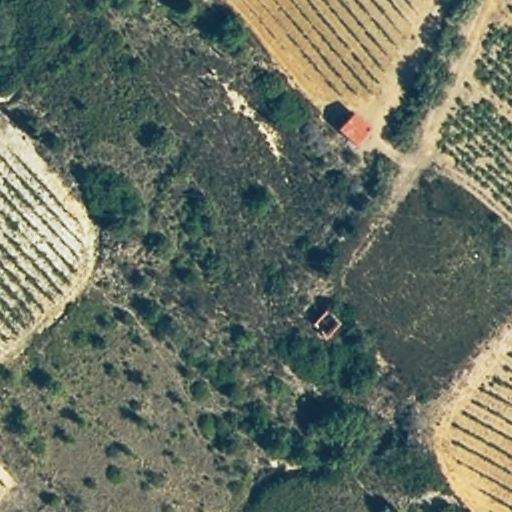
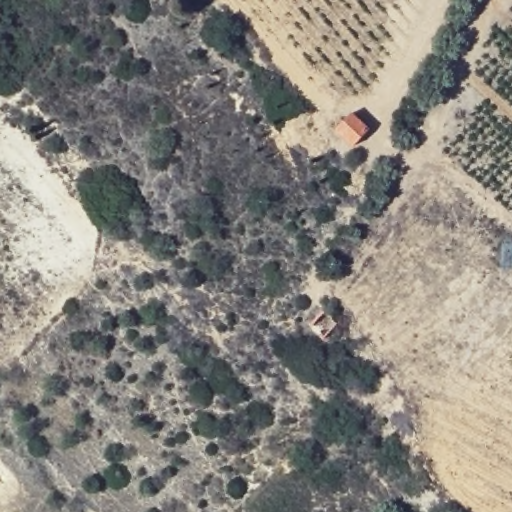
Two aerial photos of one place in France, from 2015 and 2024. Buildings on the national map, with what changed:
unchanged [(353,145),(336,130),(350,113),(369,127),(353,145)]

